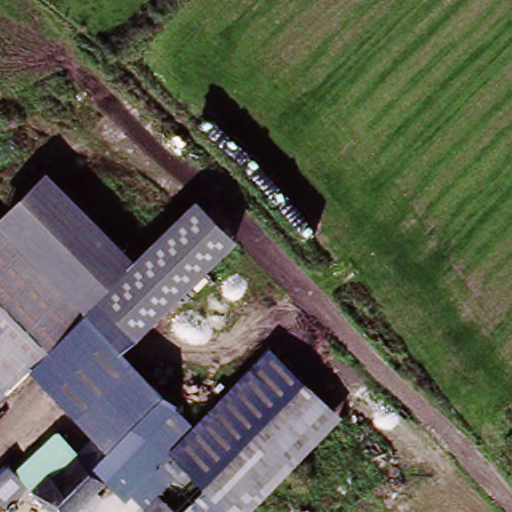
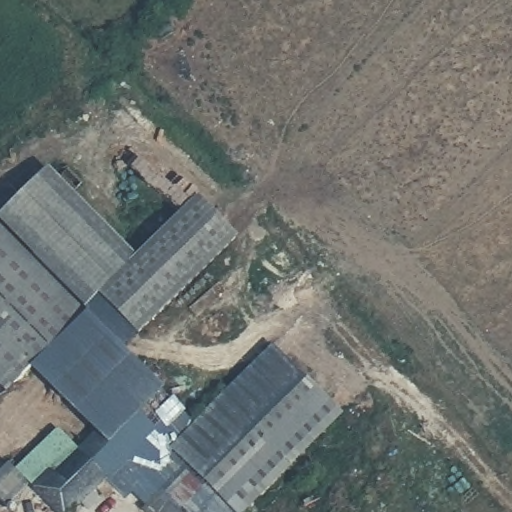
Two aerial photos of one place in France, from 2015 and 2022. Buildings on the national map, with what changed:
unchanged [(202,200),(238,240),(127,354),(198,420),(277,346),(350,416),(257,512),(148,512),(114,482),(81,512),(58,512),(30,486),(96,431),(35,369),(0,400),(0,219),(53,171),(138,256),(202,200)]
unchanged [(7,505),(0,499),(0,470),(7,463),(13,469),(58,426),(78,446),(30,486),(26,484),(7,505)]

